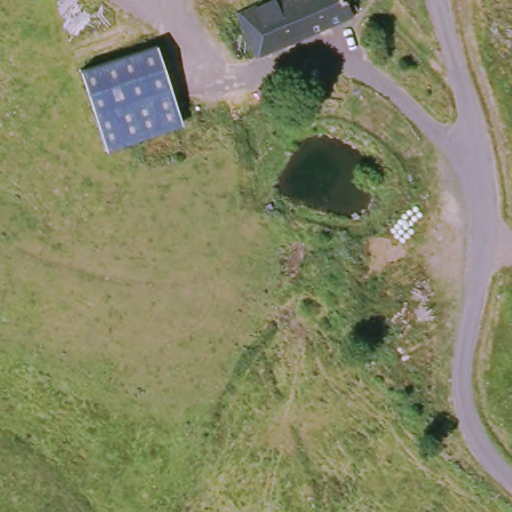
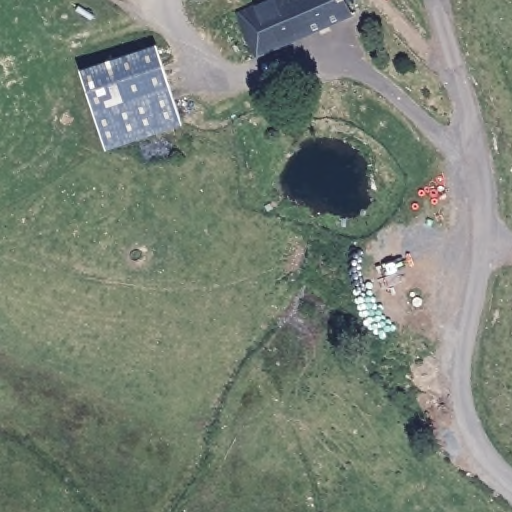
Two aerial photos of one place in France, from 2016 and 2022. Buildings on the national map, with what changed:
unchanged [(347,15),(252,56),(232,12),(261,0),(346,0),(341,2),(347,15)]
unchanged [(178,126),(99,150),(75,79),(154,52),(178,126)]

